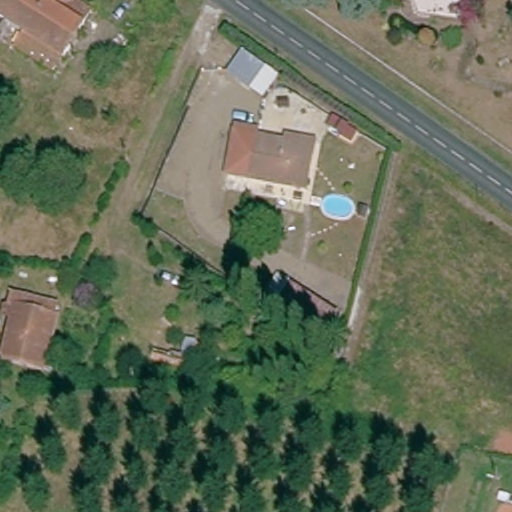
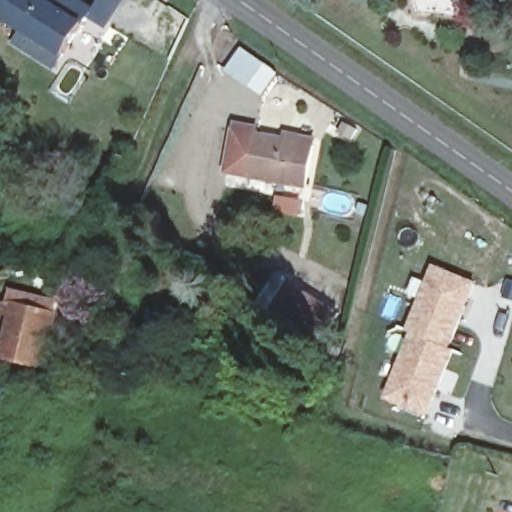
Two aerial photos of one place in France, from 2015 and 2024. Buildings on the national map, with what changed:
unchanged [(0,8),(0,0),(90,0),(95,2),(67,47),(10,14),(0,8)]
unchanged [(0,35),(0,31),(10,14),(67,47),(55,66),(0,35)]
unchanged [(280,71),(267,92),(227,63),(240,43),(280,71)]
unchanged [(266,137),(302,145),(303,135),(327,139),(325,149),(318,190),(236,175),(245,127),(267,132),(266,137)]
new [(477,282),(451,347),(456,349),(428,416),(383,398),(410,332),(407,330),(435,263),(477,282)]
unchanged [(274,289),(335,330),(318,356),(260,318),(256,315),(274,289)]
unchanged [(54,361),(42,357),(20,352),(1,348),(8,312),(2,311),(6,291),(11,292),(52,302),(48,328),(60,332),(54,361)]
unchanged [(195,352),(189,377),(149,366),(155,342),(195,352)]

